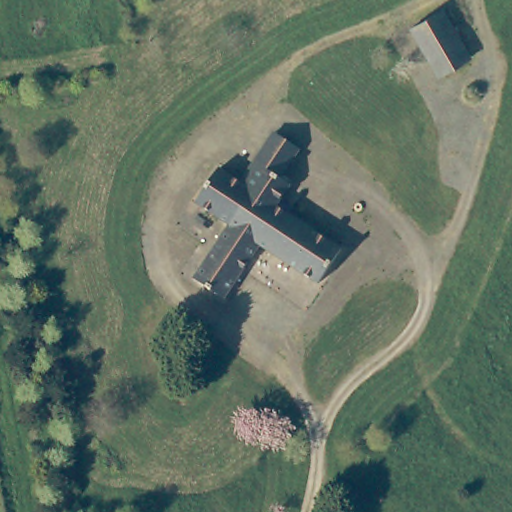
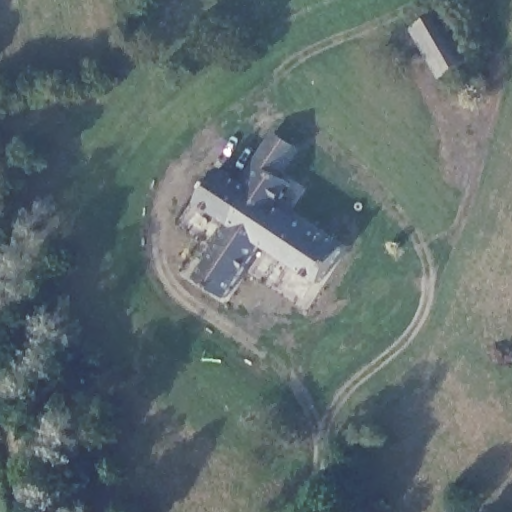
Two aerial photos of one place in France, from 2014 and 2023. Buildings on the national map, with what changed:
unchanged [(467,62),(435,82),(406,32),(439,12),(467,62)]
unchanged [(251,188),(226,225),(195,204),(219,167),(240,184),(275,134),(300,150),(283,176),(293,184),(280,207),(251,188)]
unchanged [(339,246),(316,281),(257,242),(222,297),(190,277),(251,188),(339,246)]

